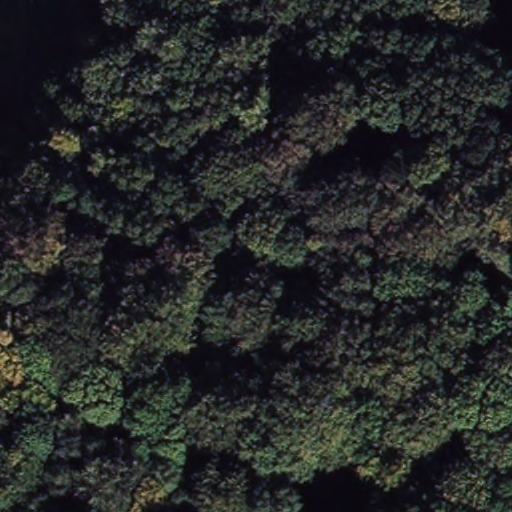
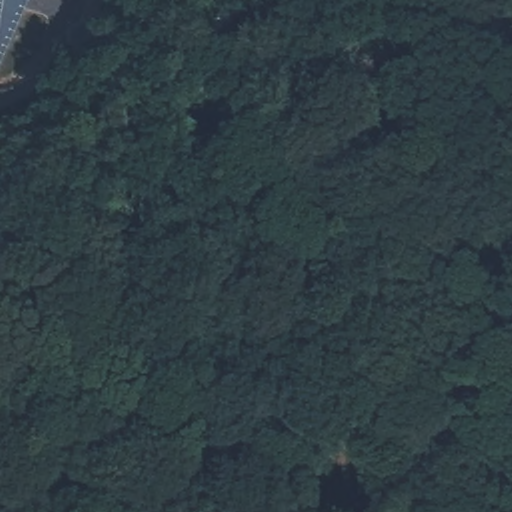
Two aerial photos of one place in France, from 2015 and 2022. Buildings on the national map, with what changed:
new [(0,54),(0,0),(25,0),(0,54)]

